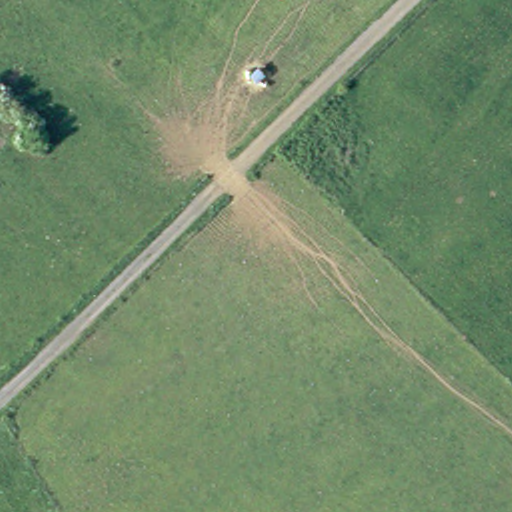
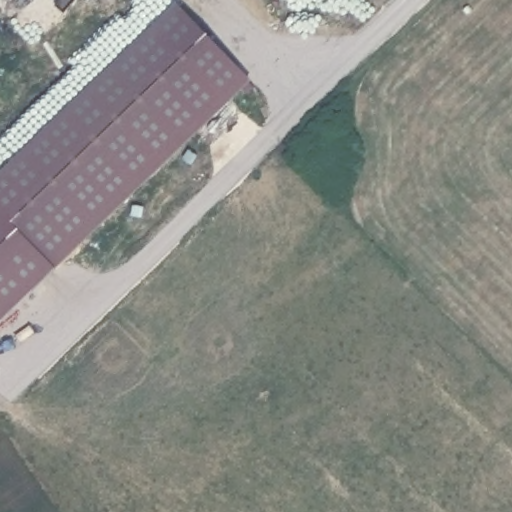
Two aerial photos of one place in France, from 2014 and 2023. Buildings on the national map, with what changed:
new [(0,321),(0,172),(177,2),(251,80),(0,321)]

